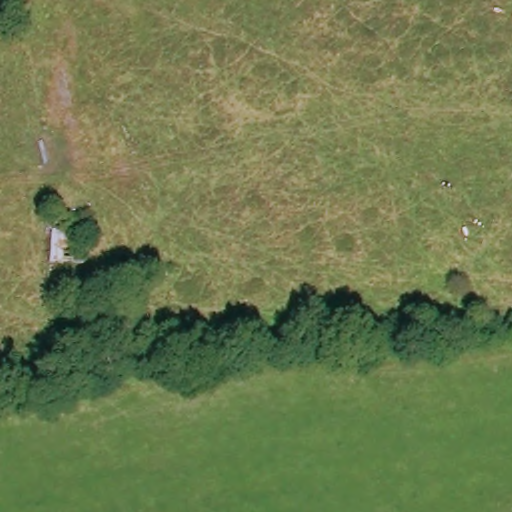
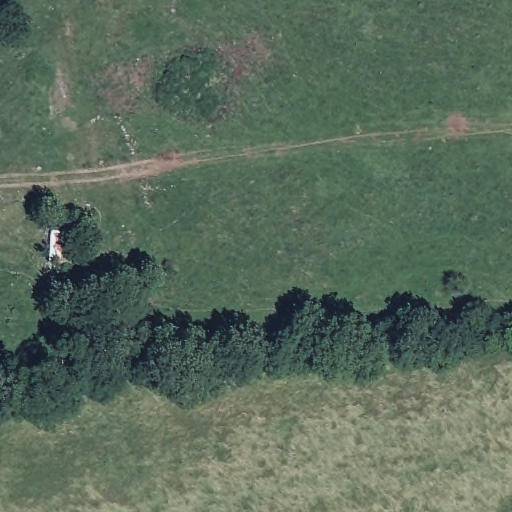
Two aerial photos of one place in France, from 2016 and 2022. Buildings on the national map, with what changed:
unchanged [(82,277),(46,276),(44,221),(83,223),(82,277)]

